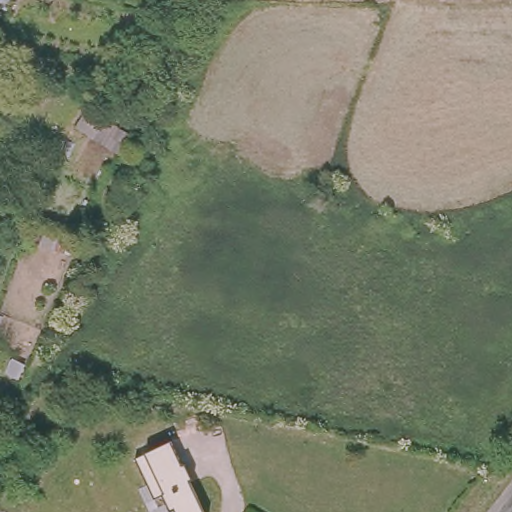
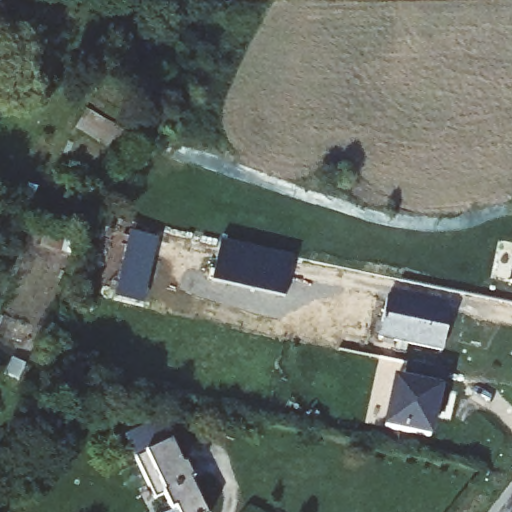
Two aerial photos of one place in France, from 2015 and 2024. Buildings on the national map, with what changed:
unchanged [(0,7),(0,0),(15,0),(13,10),(0,7)]
new [(143,305),(115,298),(130,233),(157,240),(143,305)]
new [(283,296),(211,282),(221,243),(293,258),(283,296)]
new [(508,283),(512,266),(512,284),(508,283)]
new [(449,311),(441,352),(379,339),(389,297),(449,311)]
new [(384,428),(397,379),(403,380),(406,364),(448,374),(439,417),(435,416),(431,439),(384,428)]
unchanged [(170,445),(207,512),(168,512),(141,453),(170,445)]

